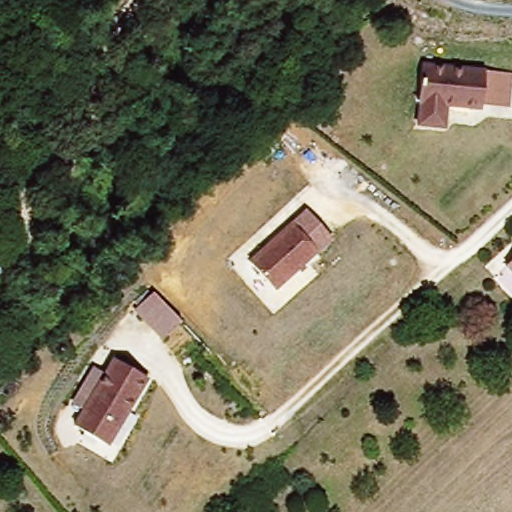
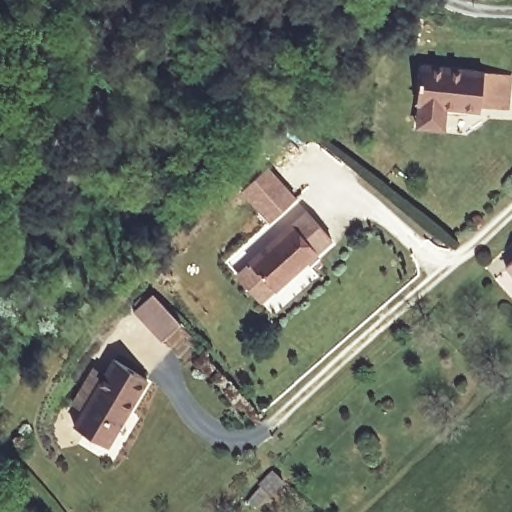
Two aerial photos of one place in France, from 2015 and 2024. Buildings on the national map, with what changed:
unchanged [(420,62),(485,68),(511,74),(508,107),(482,106),(481,111),(449,108),(447,129),(415,126),(420,62)]
new [(265,171),(292,204),(270,223),(242,191),(265,171)]
unchanged [(249,255),(305,207),(332,239),(275,290),(249,255)]
unchanged [(512,266),(512,278),(506,272),(512,266)]
unchanged [(130,312),(150,291),(181,318),(162,340),(130,312)]
unchanged [(72,425),(81,410),(73,405),(97,365),(105,369),(112,358),(147,377),(110,445),(72,425)]

